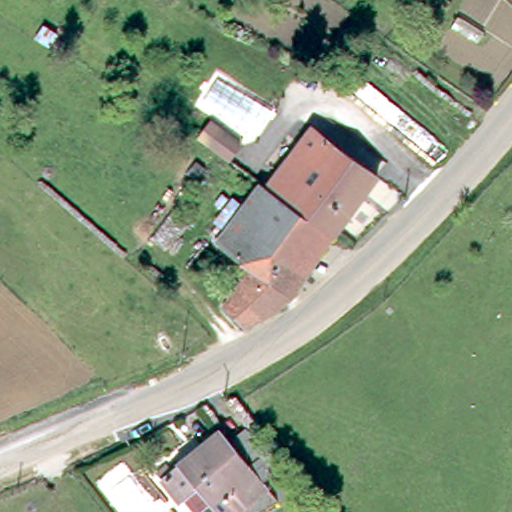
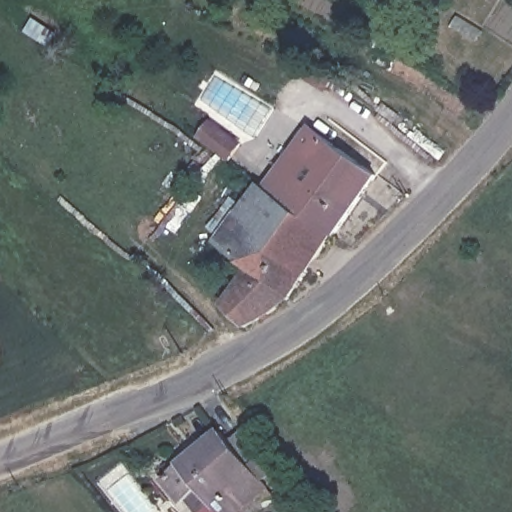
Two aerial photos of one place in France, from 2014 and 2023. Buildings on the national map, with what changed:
unchanged [(309,124),(381,170),(338,231),(269,184),(309,124)]
unchanged [(211,136),(231,150),(220,167),(199,153),(211,136)]
unchanged [(338,231),(294,293),(254,325),(228,305),(257,266),(221,241),(263,180),(269,184),(338,231)]
unchanged [(210,503),(199,512),(194,512),(182,498),(178,501),(155,472),(164,465),(169,470),(219,431),(266,485),(235,512),(217,512),(210,503)]

